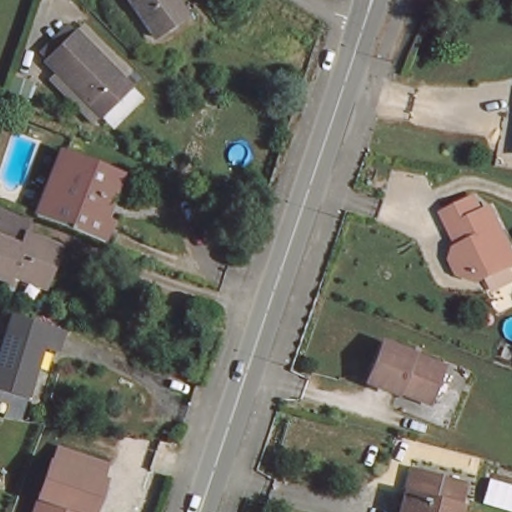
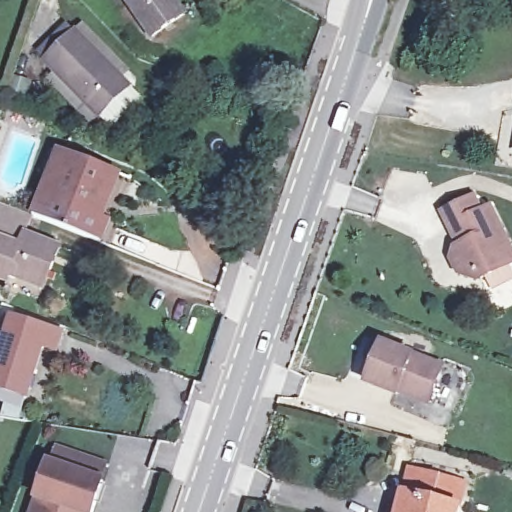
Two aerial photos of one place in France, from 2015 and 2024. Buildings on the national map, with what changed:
unchanged [(153,37),(127,0),(183,0),(190,10),(153,37)]
unchanged [(132,88),(99,120),(40,62),(43,59),(38,53),(65,26),(71,33),(75,29),(132,88)]
unchanged [(103,244),(33,217),(58,150),(113,170),(123,174),(105,219),(112,221),(103,244)]
unchanged [(484,207),(494,202),(512,239),(512,261),(489,272),(459,265),(452,251),(464,236),(456,221),(450,208),(478,194),(484,207)]
unchanged [(44,289),(9,277),(6,285),(0,283),(0,205),(30,216),(23,234),(61,246),(44,289)]
unchanged [(40,334),(24,378),(0,368),(0,344),(13,309),(60,327),(55,340),(40,334)]
unchanged [(379,338),(438,358),(424,397),(396,387),(395,390),(364,379),(379,338)]
unchanged [(31,500),(47,459),(53,461),(58,445),(109,462),(105,478),(95,512),(33,512),(37,502),(31,500)]
unchanged [(454,512),(394,512),(401,489),(403,478),(459,492),(457,501),(454,512)]

